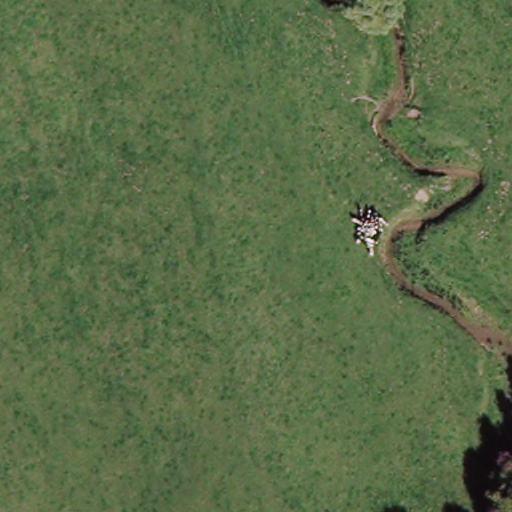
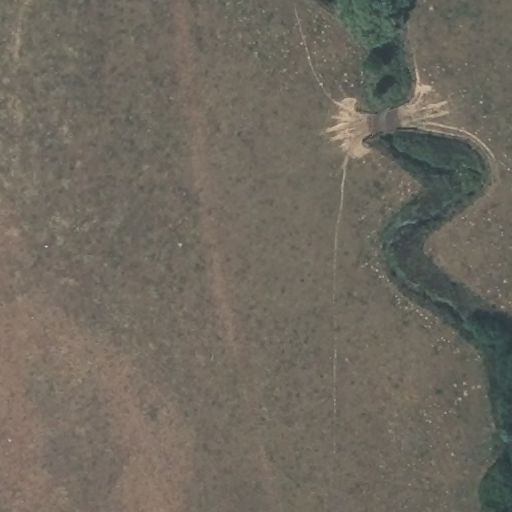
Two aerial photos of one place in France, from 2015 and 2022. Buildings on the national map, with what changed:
[]

